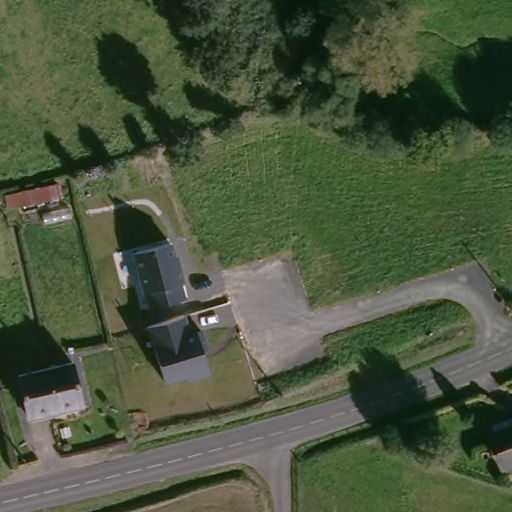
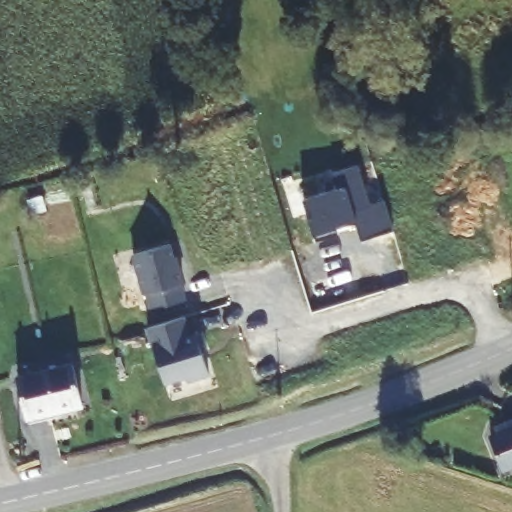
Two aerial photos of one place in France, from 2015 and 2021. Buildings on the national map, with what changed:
new [(339,233),(317,240),(304,197),(338,187),(333,172),(358,164),(371,206),(386,201),(395,232),(363,242),(357,223),(349,225),(350,230),(339,233)]
unchanged [(170,243),(174,258),(177,256),(184,283),(181,284),(185,300),(149,310),(146,293),(141,294),(131,254),(170,243)]
unchanged [(185,317),(191,335),(202,331),(208,351),(200,352),(209,377),(187,383),(186,377),(164,384),(147,328),(185,317)]
unchanged [(76,364),(86,407),(29,419),(20,377),(76,364)]
unchanged [(478,438),(484,436),(481,429),(512,417),(512,470),(493,477),(478,438)]

